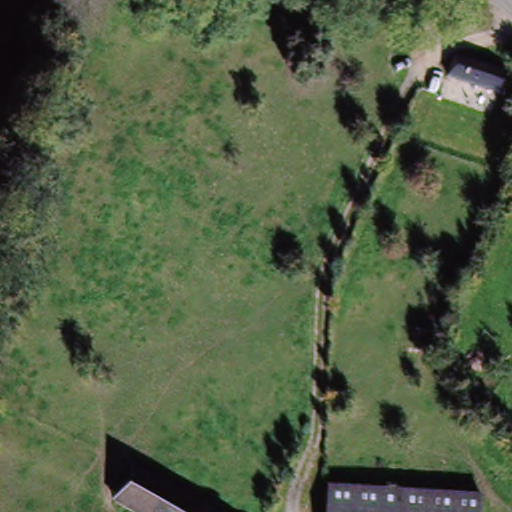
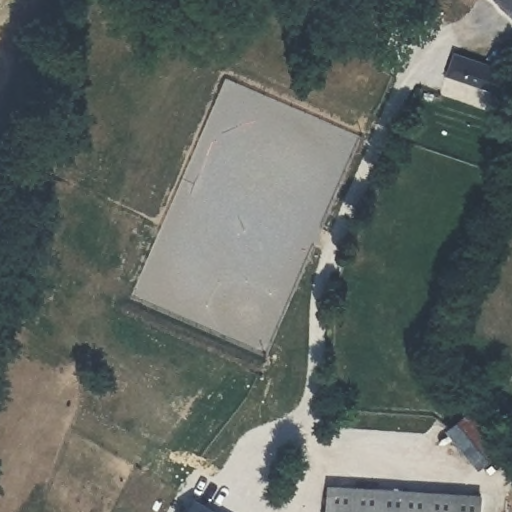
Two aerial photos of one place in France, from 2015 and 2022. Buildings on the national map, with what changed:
unchanged [(508,74),(506,95),(451,81),(455,61),(508,74)]
unchanged [(220,512),(144,512),(113,494),(131,462),(220,512)]
unchanged [(484,512),(334,512),(335,487),(485,492),(484,512)]

